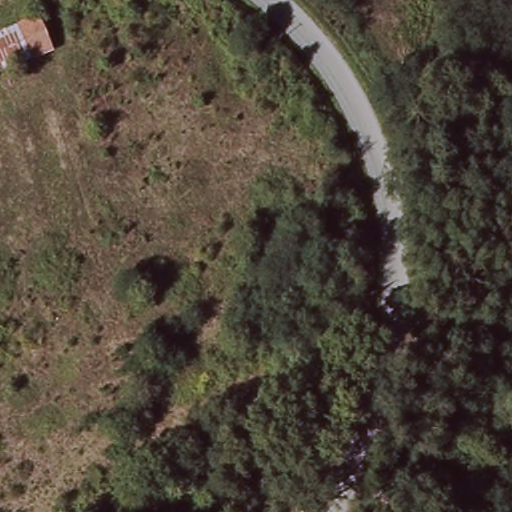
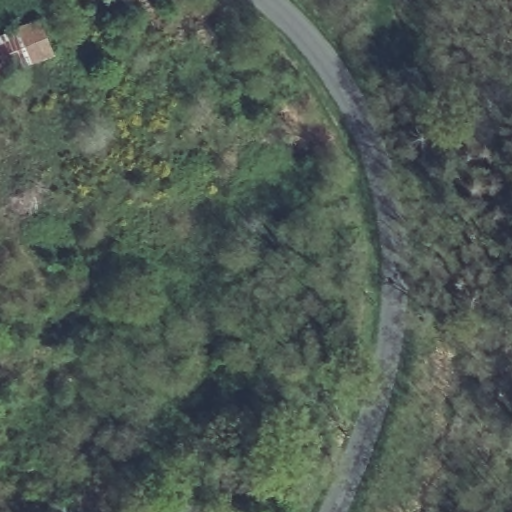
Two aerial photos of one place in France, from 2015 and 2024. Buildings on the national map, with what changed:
unchanged [(0,76),(0,36),(40,21),(56,56),(0,76)]

